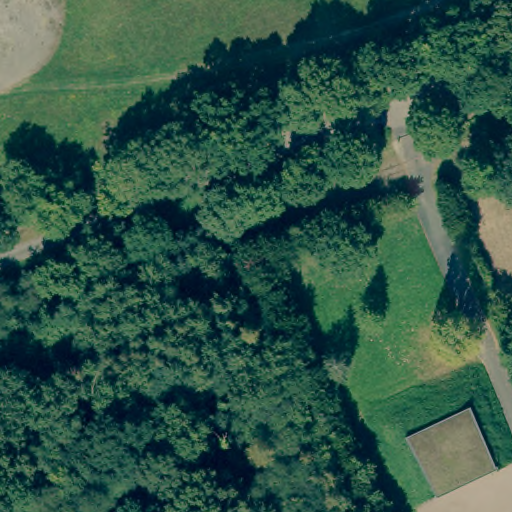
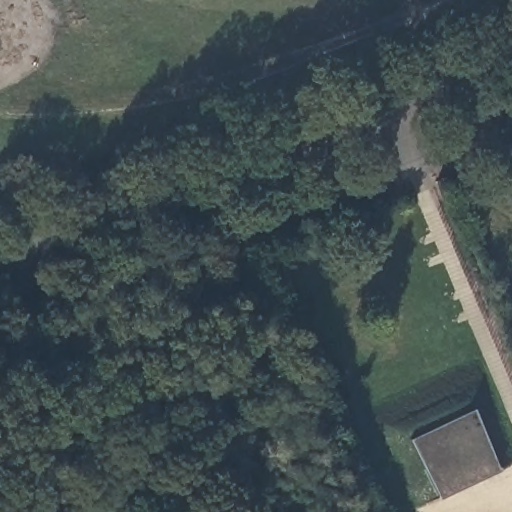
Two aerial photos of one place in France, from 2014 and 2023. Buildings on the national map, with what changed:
unchanged [(469,408),(491,468),(436,493),(406,433),(469,408)]

